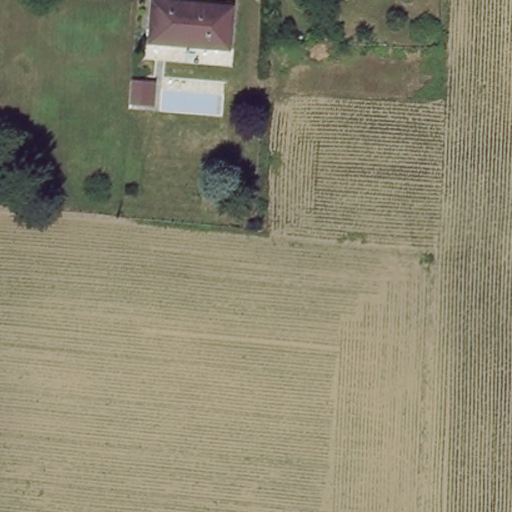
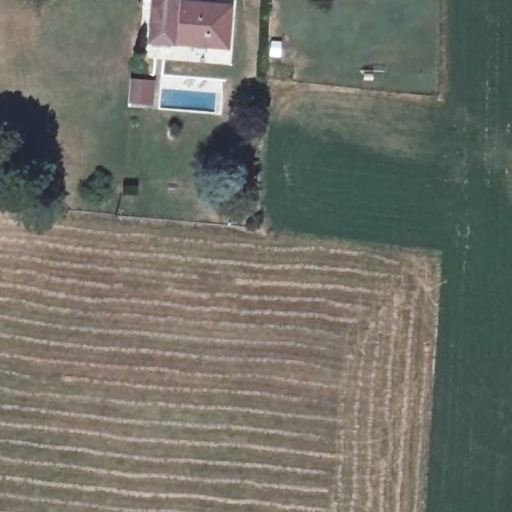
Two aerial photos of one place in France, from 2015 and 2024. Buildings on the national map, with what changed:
unchanged [(222,48),(152,47),(154,8),(223,12),(222,48)]

